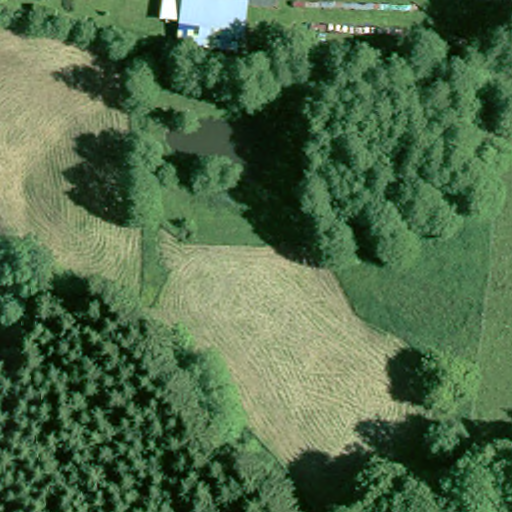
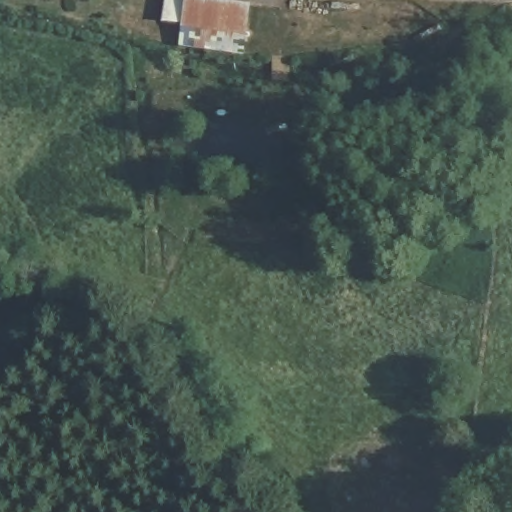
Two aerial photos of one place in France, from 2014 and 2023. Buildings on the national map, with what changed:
unchanged [(190,0),(241,11),(238,32),(181,24),(183,0),(190,0)]

